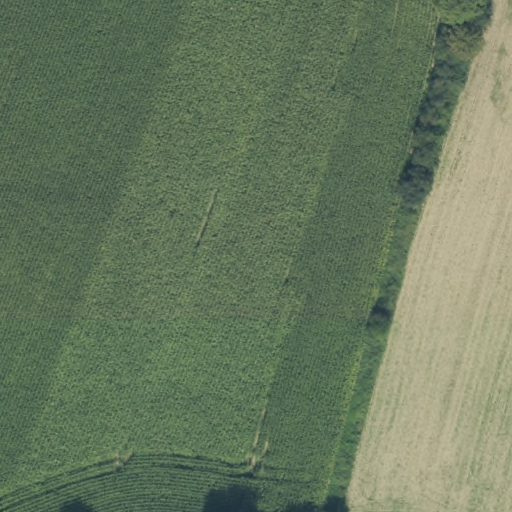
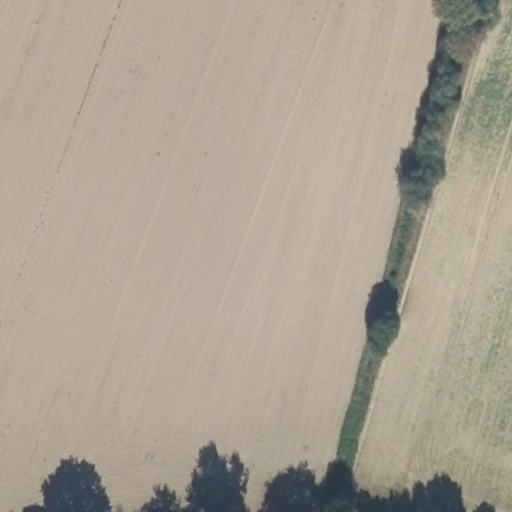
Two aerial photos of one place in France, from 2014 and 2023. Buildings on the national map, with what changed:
[]

